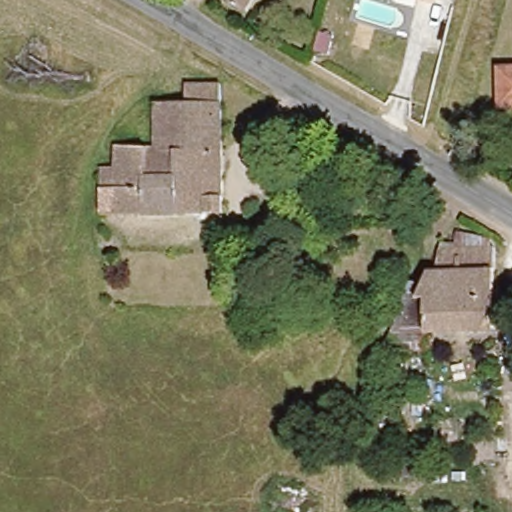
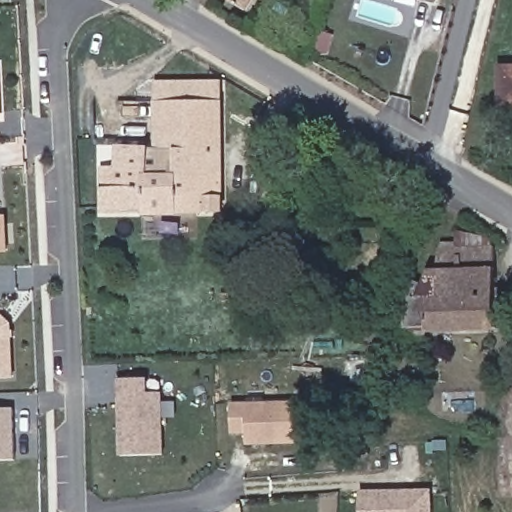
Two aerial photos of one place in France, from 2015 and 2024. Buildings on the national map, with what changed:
unchanged [(225,0),(253,0),(246,12),(225,0)]
unchanged [(495,66),(512,66),(512,106),(496,106),(495,66)]
new [(0,118),(0,75),(2,110),(2,117),(0,118)]
unchanged [(102,208),(101,164),(114,162),(112,136),(157,136),(157,99),(188,99),(187,80),(220,80),(222,206),(102,208)]
new [(1,219),(3,252),(0,252),(0,219),(1,219)]
unchanged [(437,267),(442,239),(455,240),(454,227),(489,235),(490,242),(493,242),(493,290),(512,290),(512,309),(494,309),(493,325),(425,325),(427,317),(431,307),(421,307),(419,293),(423,282),(427,268),(437,267)]
new [(12,324),(15,377),(0,378),(0,312),(12,324)]
demolished [(390,398),(378,397),(380,376),(391,376),(390,398)]
new [(150,380),(150,395),(165,395),(167,456),(125,457),(122,380),(150,380)]
new [(294,404),(294,445),(246,446),(245,435),(231,434),(230,405),(294,404)]
new [(18,461),(0,462),(0,409),(16,408),(18,461)]
new [(427,512),(359,512),(358,494),(427,493),(427,512)]

